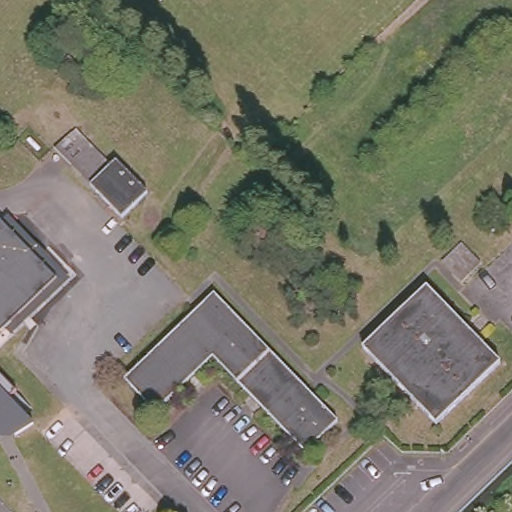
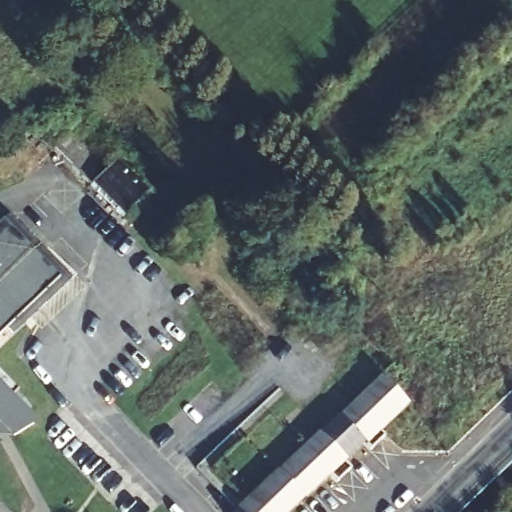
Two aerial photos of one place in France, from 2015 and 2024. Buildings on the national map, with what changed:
unchanged [(477,6),(498,27),(435,92),(414,72),(477,6)]
unchanged [(121,219),(90,186),(81,177),(72,168),(53,150),(75,130),(92,148),(101,157),(110,167),(116,162),(147,194),(121,219)]
unchanged [(51,281),(0,330),(0,228),(51,281)]
demolished [(442,262),(452,253),(461,243),(481,264),(471,273),(462,283),(442,262)]
demolished [(362,348),(426,287),(500,364),(436,425),(362,348)]
demolished [(213,357),(156,412),(125,380),(214,294),(338,422),(306,453),(213,357)]
new [(350,470),(336,482),(330,476),(302,501),(290,512),(232,512),(277,470),(317,433),(380,374),(409,404),(380,431),(385,436),(370,450),(364,444),(345,464),(350,470)]
unchanged [(11,393),(3,400),(28,424),(11,434),(0,435),(0,381),(11,393)]

